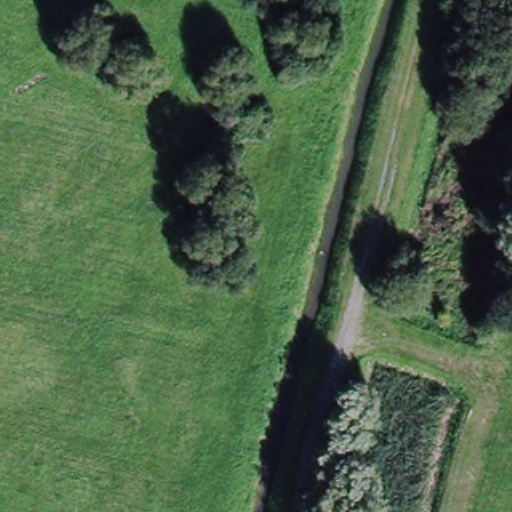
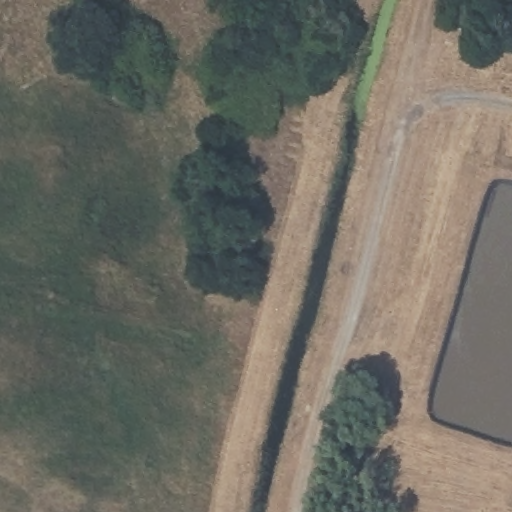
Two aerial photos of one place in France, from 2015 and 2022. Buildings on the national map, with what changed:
[]

